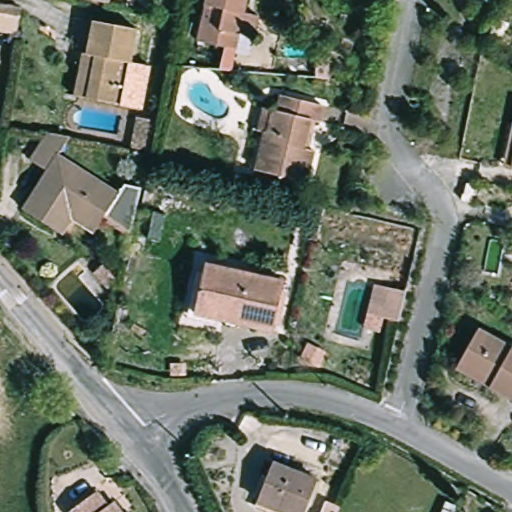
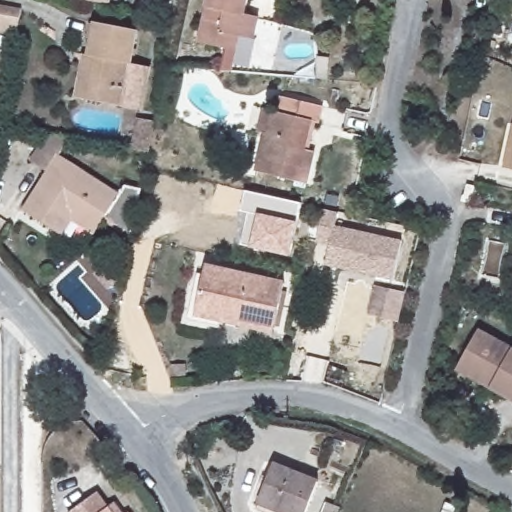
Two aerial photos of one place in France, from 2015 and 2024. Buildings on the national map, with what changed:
unchanged [(87,0),(109,0),(109,4),(87,0)]
unchanged [(264,17),(259,39),(244,35),(241,51),(203,42),(211,0),(252,0),(250,14),(264,17)]
unchanged [(21,9),(16,36),(0,33),(0,6),(21,9)]
unchanged [(83,55),(88,56),(94,22),(136,30),(121,106),(87,99),(75,97),(83,55)]
unchanged [(328,58),(324,79),(311,78),(316,56),(328,58)]
unchanged [(285,96),(327,106),(323,122),(315,120),(308,149),(318,151),(311,184),(260,171),(270,134),(263,132),(269,109),(278,111),(281,112),(285,96)]
unchanged [(149,151),(131,148),(137,117),(155,121),(149,151)]
unchanged [(72,223),(62,239),(53,234),(23,214),(47,176),(30,165),(49,137),(71,142),(59,161),(119,199),(125,190),(141,193),(131,238),(105,221),(100,229),(95,237),(72,223)]
unchanged [(509,166),(512,150),(512,167),(509,166)]
unchanged [(473,191),(471,203),(470,203),(461,200),(463,196),(464,195),(467,184),(474,186),(473,191)]
new [(298,222),(292,256),(252,246),(242,245),(251,212),(242,210),(247,189),(302,203),(298,222)]
new [(338,211),(335,225),(402,240),(393,279),(326,264),(330,244),(316,241),(324,208),(338,211)]
unchanged [(104,265),(117,281),(108,289),(94,273),(104,265)]
unchanged [(273,332),(196,315),(206,265),(284,282),(273,332)]
unchanged [(399,322),(384,318),(390,289),(406,292),(399,322)]
unchanged [(478,329),(512,348),(512,400),(456,368),(478,329)]
unchanged [(317,481),(305,512),(281,512),(257,503),(272,464),(317,481)]
unchanged [(96,492),(107,507),(113,503),(120,512),(70,512),(96,492)]

